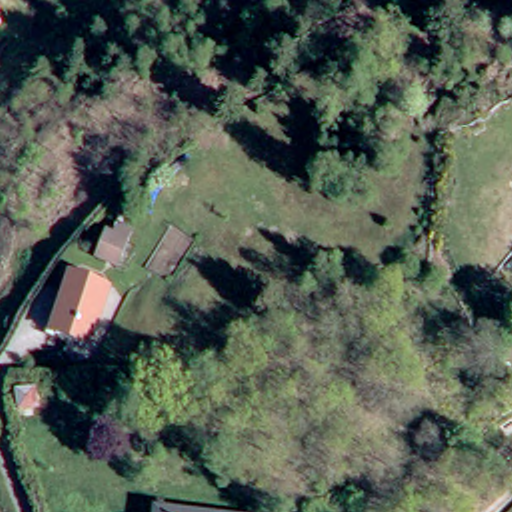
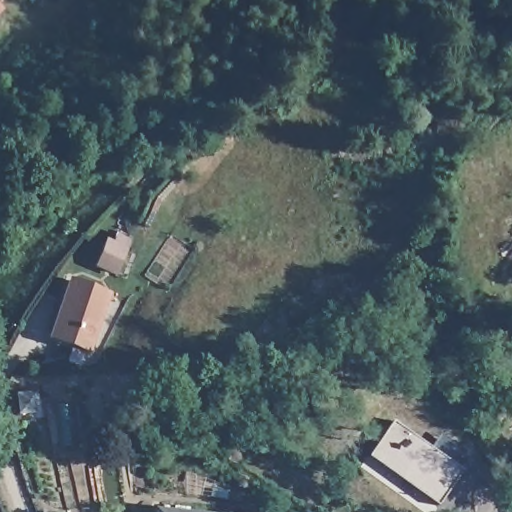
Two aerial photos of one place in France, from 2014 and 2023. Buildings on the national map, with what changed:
unchanged [(120,233),(133,237),(120,271),(101,265),(110,241),(117,243),(120,233)]
unchanged [(66,297),(73,278),(113,293),(93,350),(58,338),(52,336),(66,297)]
new [(393,419),(463,469),(438,506),(367,456),(393,419)]
unchanged [(181,512),(154,512),(155,508),(181,512)]

